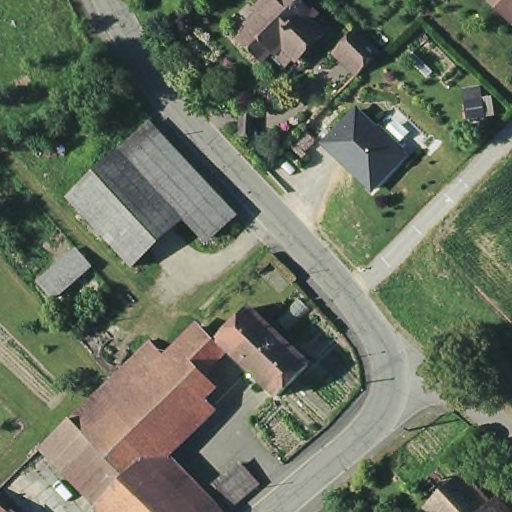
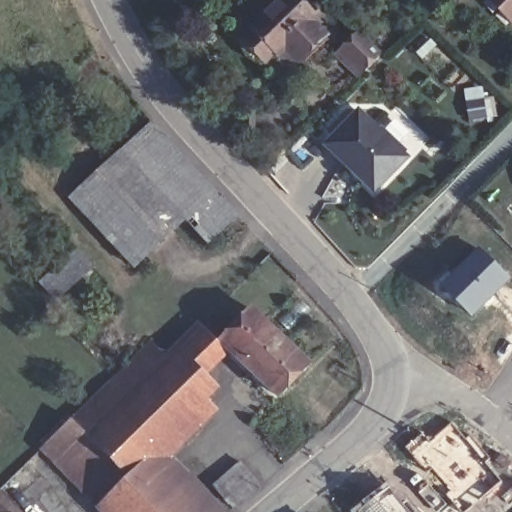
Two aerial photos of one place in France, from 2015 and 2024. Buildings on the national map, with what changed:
unchanged [(295,67),(287,58),(277,67),(250,40),(261,28),(255,21),(276,0),(278,0),(281,2),(284,0),(294,0),(312,17),(314,16),(319,21),(312,28),(322,41),(295,67)]
unchanged [(512,22),(493,0),(512,0),(512,22)]
unchanged [(337,59),(359,36),(380,57),(357,79),(337,59)]
unchanged [(469,106),(467,96),(482,94),(483,103),(494,102),(497,119),(486,121),(471,123),(469,106)]
unchanged [(412,155),(375,192),(321,137),(357,102),(412,155)]
unchanged [(152,132),(235,222),(210,246),(187,220),(126,155),(152,132)]
unchanged [(187,220),(135,269),(75,203),(126,155),(187,220)]
unchanged [(81,243),(94,258),(55,291),(42,276),(81,243)]
new [(507,278),(469,318),(439,284),(475,248),(507,278)]
unchanged [(222,341),(252,308),(270,326),(240,357),(227,346),(222,341)]
unchanged [(270,326),(312,366),(283,396),(240,357),(270,326)]
unchanged [(85,407),(92,398),(119,372),(124,377),(142,358),(160,377),(187,350),(203,332),(222,351),(202,371),(212,382),(199,394),(208,405),(199,413),(154,457),(150,460),(150,459),(129,479),(101,507),(42,450),(85,407)]
unchanged [(129,479),(150,459),(150,460),(203,512),(107,512),(101,507),(129,479)]
unchanged [(232,475),(244,463),(265,485),(251,497),(236,509),(218,487),(232,475)]
unchanged [(430,512),(422,502),(452,478),(466,497),(470,493),(484,512),(430,512)]
unchanged [(0,512),(0,506),(7,512),(0,512)]

